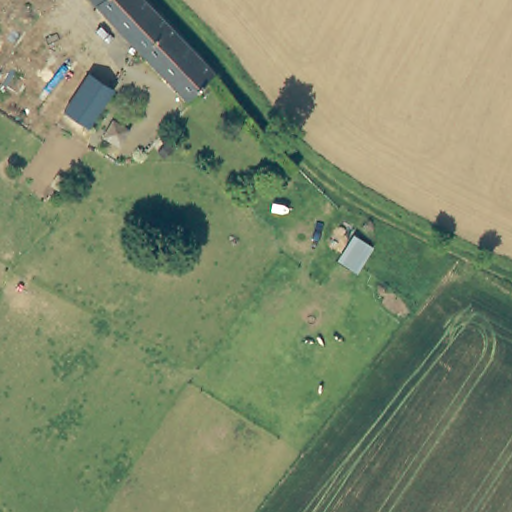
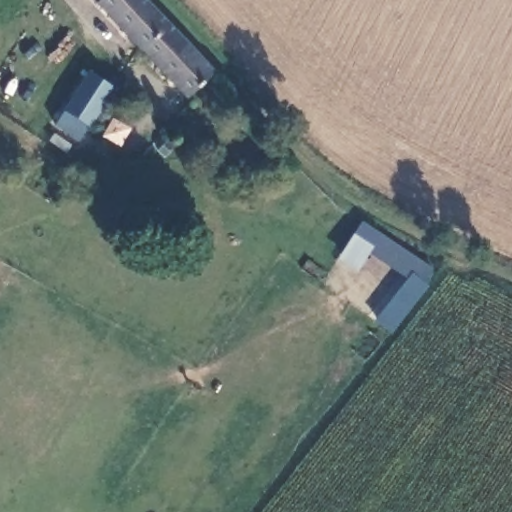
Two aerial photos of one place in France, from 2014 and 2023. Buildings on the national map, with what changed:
unchanged [(186,97),(92,0),(144,0),(213,72),(186,97)]
unchanged [(89,72),(114,89),(80,139),(66,131),(75,117),(64,110),(89,72)]
new [(408,277),(369,252),(357,271),(338,257),(362,221),(433,268),(424,283),(427,285),(389,332),(374,321),(408,277)]

